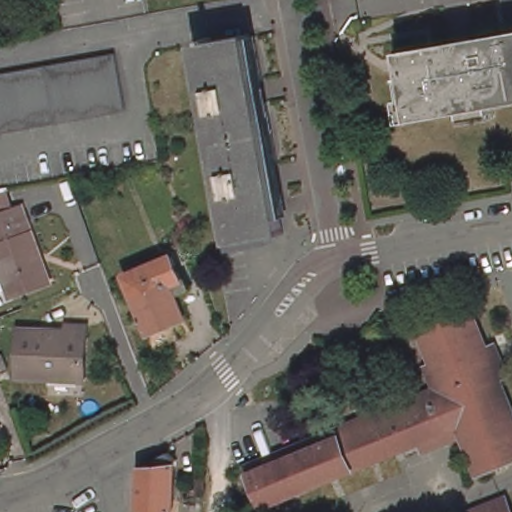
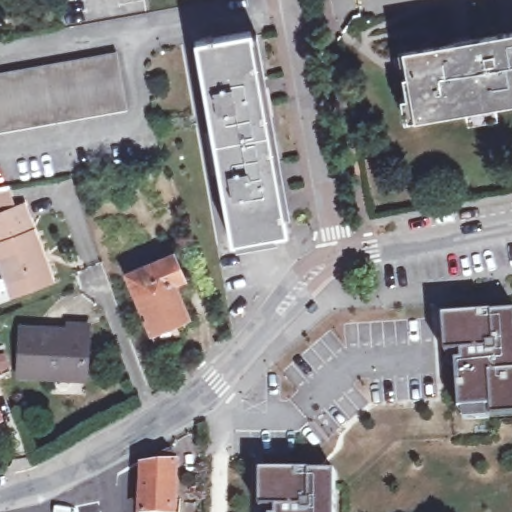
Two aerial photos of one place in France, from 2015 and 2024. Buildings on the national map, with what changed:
unchanged [(506,0),(512,0),(512,37),(511,37),(506,0)]
unchanged [(511,37),(512,37),(512,103),(500,105),(500,111),(492,113),(491,109),(490,103),(480,43),(506,38),(511,37)]
unchanged [(215,41),(224,39),(225,44),(259,39),(294,237),(240,245),(229,178),(222,179),(215,138),(222,137),(206,48),(216,46),(215,41)]
unchanged [(470,116),(469,111),(461,113),(438,116),(437,110),(411,114),(406,80),(405,74),(403,61),(402,58),(440,50),(455,48),(475,44),(480,43),(490,103),(491,109),(492,113),(470,116)]
unchanged [(0,134),(0,74),(122,53),(132,110),(0,134)]
unchanged [(57,284),(17,299),(0,256),(0,220),(23,212),(32,236),(33,237),(38,235),(57,284)]
unchanged [(157,339),(130,272),(177,254),(187,279),(179,282),(192,316),(180,322),(182,330),(157,339)]
demolished [(484,314),(498,348),(512,382),(512,467),(507,469),(491,476),(485,459),(477,440),(473,429),(434,444),(277,509),(260,468),(390,414),(446,391),(456,387),(447,364),(435,334),(484,314)]
new [(459,411),(455,365),(462,364),(462,354),(446,355),(444,320),(512,315),(512,417),(490,419),(466,421),(465,411),(459,411)]
unchanged [(83,383),(23,381),(25,333),(70,335),(70,328),(86,329),(83,383)]
unchanged [(0,364),(0,353),(3,363),(0,364)]
unchanged [(8,418),(0,420),(0,395),(8,418)]
unchanged [(171,452),(178,458),(176,512),(142,512),(145,464),(160,464),(160,457),(171,452)]
new [(276,509),(260,509),(260,474),(335,474),(335,512),(277,512),(276,509)]

